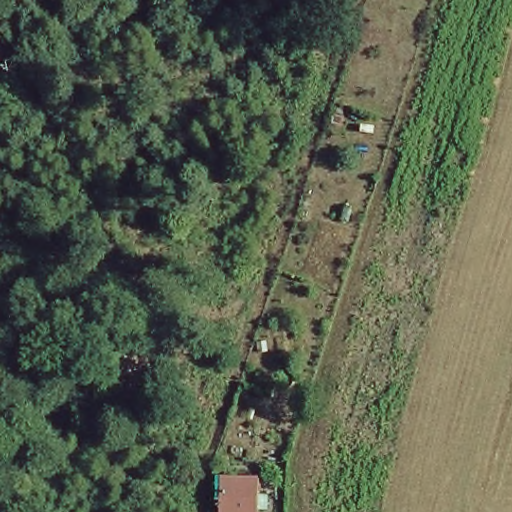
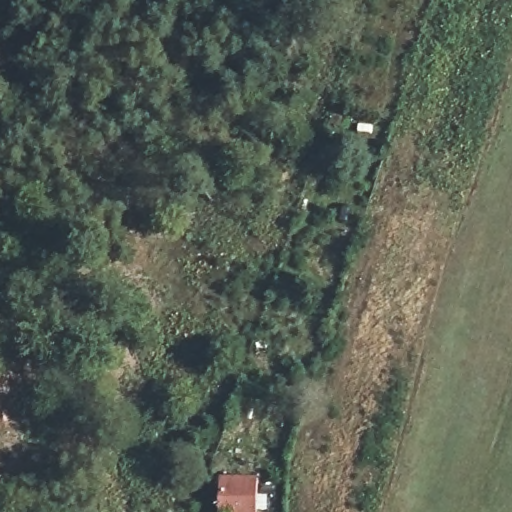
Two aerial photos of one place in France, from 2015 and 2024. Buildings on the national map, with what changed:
unchanged [(220,512),(223,477),(260,478),(257,512),(220,512)]

